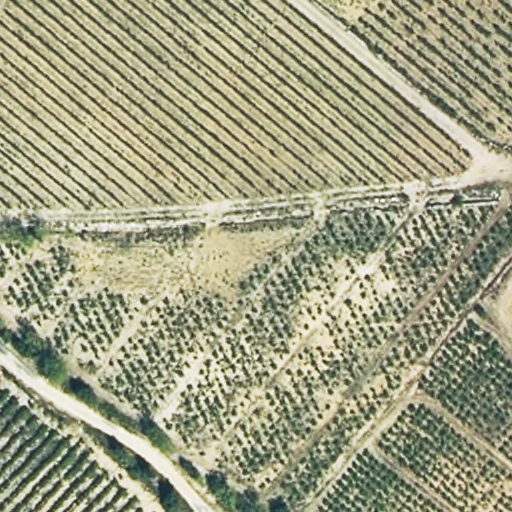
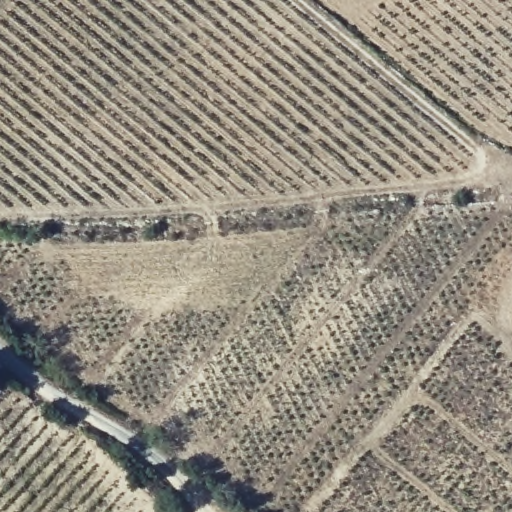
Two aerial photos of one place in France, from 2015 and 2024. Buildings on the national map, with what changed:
[]

